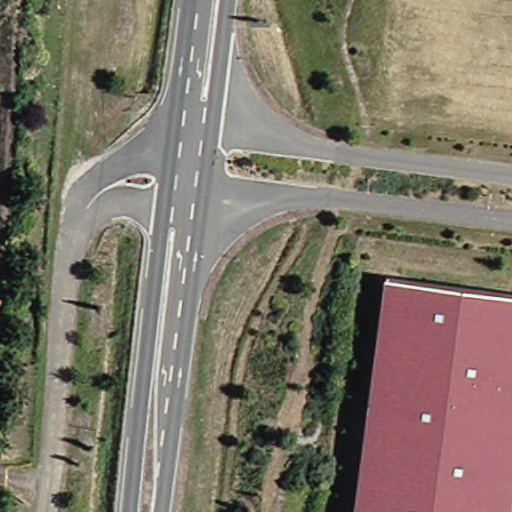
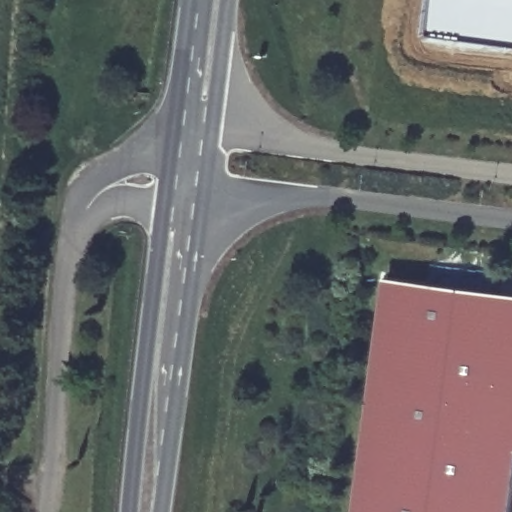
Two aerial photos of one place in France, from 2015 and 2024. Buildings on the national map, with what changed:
new [(436,0),(512,0),(512,44),(432,34),(436,0)]
unchanged [(349,512),(381,277),(512,295),(512,471),(507,512),(349,512)]

